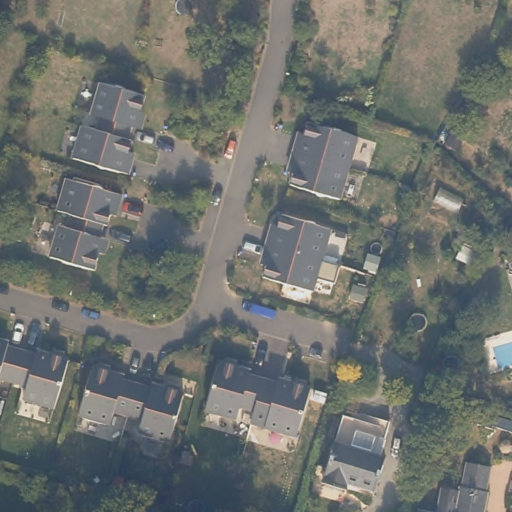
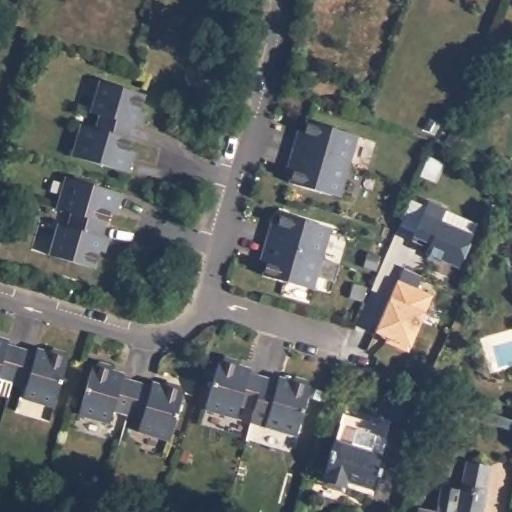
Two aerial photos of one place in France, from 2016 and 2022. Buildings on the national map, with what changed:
unchanged [(136,157),(132,172),(76,156),(85,125),(100,129),(104,115),(95,112),(103,81),(148,94),(139,124),(135,123),(131,137),(135,138),(132,150),(138,151),(136,157)]
unchanged [(293,160),(298,144),(301,131),(303,126),(308,127),(311,116),(361,130),(353,158),(344,192),(294,178),(298,167),(292,165),(293,160)]
unchanged [(126,193),(122,208),(121,214),(115,212),(112,223),(108,222),(105,236),(109,237),(108,238),(100,268),(75,261),(56,256),(63,227),(64,225),(73,228),(77,214),(62,210),(62,209),(71,178),(126,193)]
new [(426,248),(412,240),(415,234),(399,227),(411,199),(427,205),(430,200),(446,208),(445,211),(476,222),(472,233),(474,234),(459,268),(425,253),(426,248)]
unchanged [(268,253),(272,237),(275,224),(277,219),(283,220),(286,209),(336,223),(328,251),(319,285),(269,271),(272,260),(266,258),(268,253)]
new [(397,279),(404,268),(423,275),(415,287),(433,295),(425,312),(408,347),(373,331),(390,297),(397,279)]
unchanged [(26,397),(29,384),(28,383),(16,380),(0,375),(0,337),(10,340),(9,344),(24,348),(38,352),(39,348),(41,348),(51,351),(56,348),(66,351),(68,356),(70,357),(56,405),(26,397)]
unchanged [(270,414),(260,411),(242,406),(238,419),(207,410),(221,361),(223,362),(227,359),(237,362),(239,367),(252,370),(250,375),(268,380),(279,383),(280,378),(293,382),(297,379),(307,382),(309,387),(311,387),(298,436),(267,427),(270,414)]
unchanged [(172,438),(141,429),(145,416),(136,414),(133,413),(116,408),(113,421),(81,413),(95,364),(98,365),(101,361),(111,364),(114,369),(126,373),(125,377),(141,382),(148,384),(154,385),(155,381),(167,384),(172,381),(182,384),(184,389),(186,390),(172,438)]
unchanged [(476,396),(474,406),(454,401),(457,390),(476,396)]
unchanged [(509,405),(506,417),(483,412),(487,399),(509,405)]
unchanged [(511,419),(512,416),(512,420),(511,419)]
unchanged [(393,439),(384,473),(355,465),(353,471),(330,465),(340,424),(393,439)]
unchanged [(431,506),(445,510),(448,496),(457,498),(462,477),(466,479),(471,455),(492,460),(486,483),(488,484),(482,512),(429,512),(431,506)]

